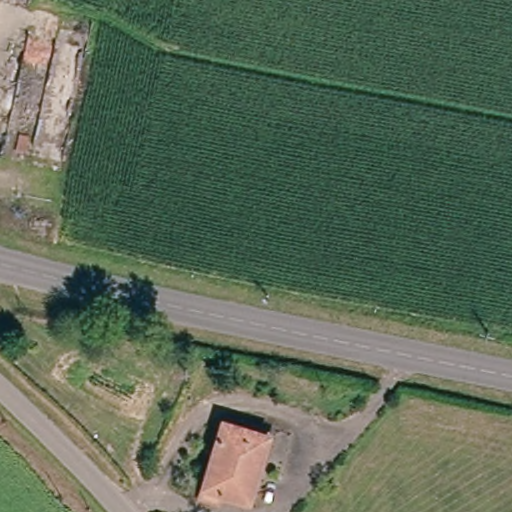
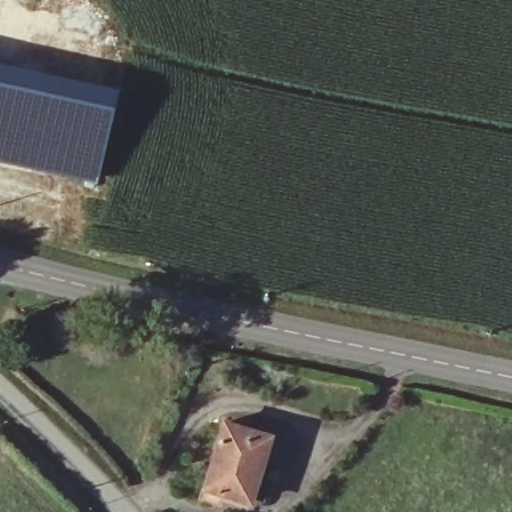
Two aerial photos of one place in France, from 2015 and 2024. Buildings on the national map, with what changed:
new [(96,184),(0,161),(0,62),(119,89),(96,184)]
unchanged [(245,502),(218,496),(215,510),(196,505),(217,419),(263,431),(245,502)]

